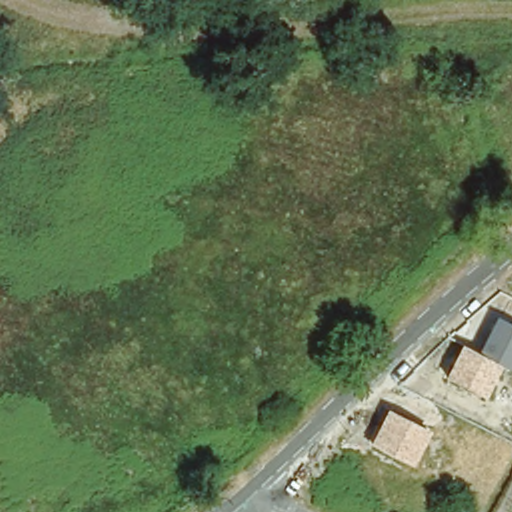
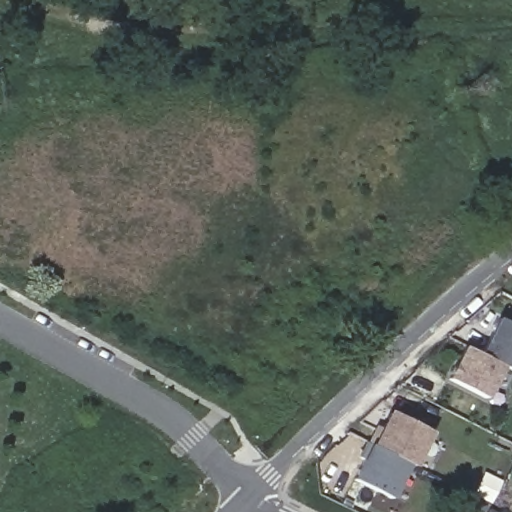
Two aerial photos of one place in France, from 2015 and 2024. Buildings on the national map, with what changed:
unchanged [(489,397),(449,375),(463,346),(480,355),(496,319),(512,326),(512,372),(503,367),(489,397)]
unchanged [(388,411),(433,432),(414,466),(408,463),(370,444),(388,411)]
new [(370,444),(408,463),(390,500),(351,480),(370,444)]

